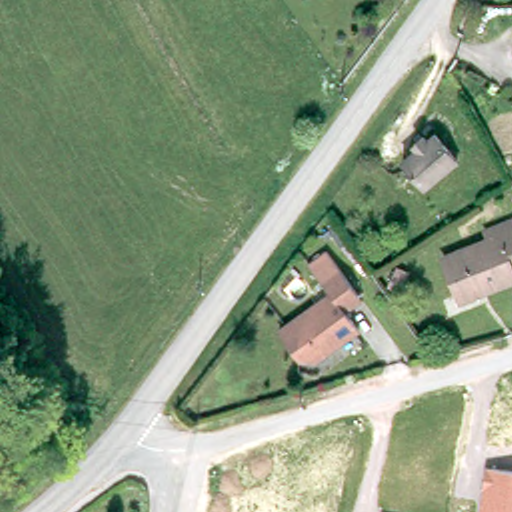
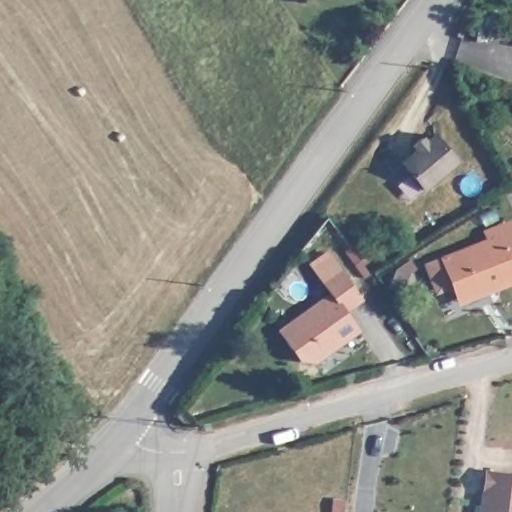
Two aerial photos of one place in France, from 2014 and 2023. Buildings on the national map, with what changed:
unchanged [(425,135),(429,138),(437,130),(462,156),(431,185),(407,159),(419,147),(416,144),(425,135)]
unchanged [(463,300),(446,264),(493,241),(490,235),(510,225),(512,230),(512,286),(495,294),(467,307),(463,300)]
unchanged [(458,230),(462,239),(453,242),(450,234),(458,230)]
unchanged [(352,312),(365,331),(310,365),(287,329),(337,295),(317,266),(337,254),(368,301),(352,312)]
unchanged [(512,473),(512,512),(479,512),(485,469),(512,473)]

